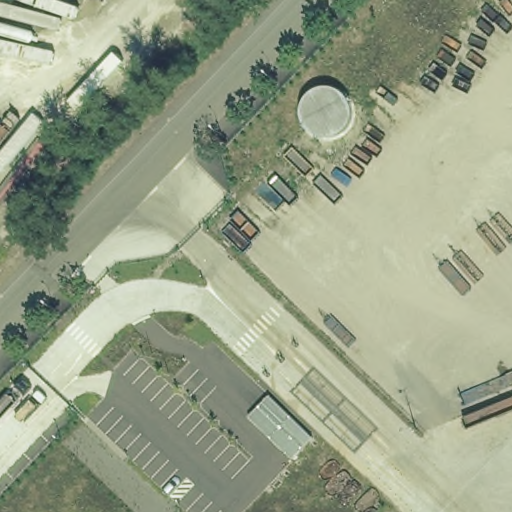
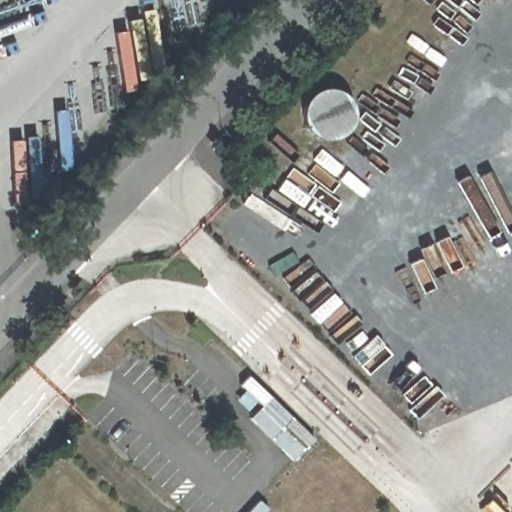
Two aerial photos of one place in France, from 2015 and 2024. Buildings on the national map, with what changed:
unchanged [(271,397),(314,439),(293,460),(250,418),(271,397)]

